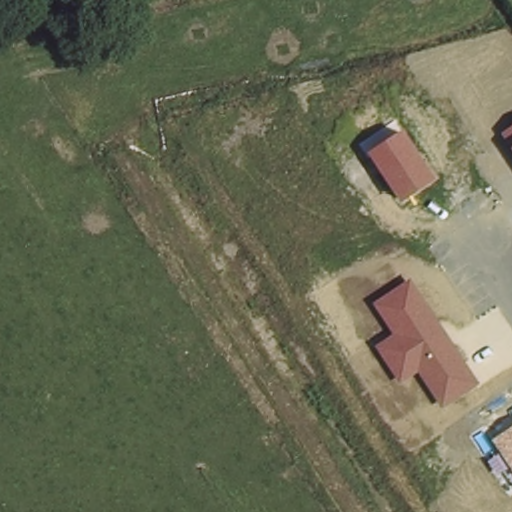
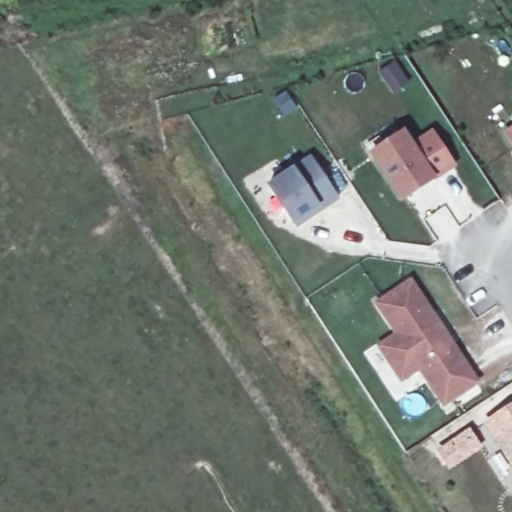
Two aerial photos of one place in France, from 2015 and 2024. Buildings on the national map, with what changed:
unchanged [(512,126),(512,151),(501,133),(512,126)]
unchanged [(402,132),(436,180),(402,204),(369,155),(402,132)]
new [(341,199),(323,210),(320,206),(296,222),(273,185),(314,158),(341,199)]
unchanged [(412,279),(481,384),(442,409),(418,373),(401,384),(375,348),(393,336),(374,304),(412,279)]
unchanged [(493,440),(512,428),(512,469),(493,440)]
new [(437,452),(467,433),(477,449),(448,468),(437,452)]

